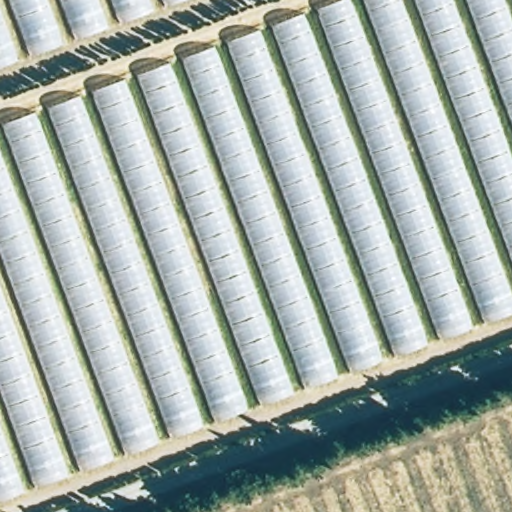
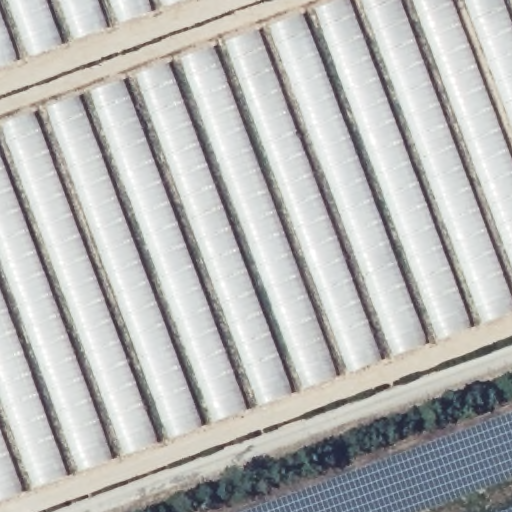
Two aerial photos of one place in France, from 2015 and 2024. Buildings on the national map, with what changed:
unchanged [(185,0),(0,70),(0,0),(185,0)]
unchanged [(512,0),(512,312),(0,499),(0,126),(342,0),(512,0)]
new [(512,413),(512,479),(424,512),(245,512),(512,413)]
new [(512,509),(512,512),(504,512),(512,509)]

